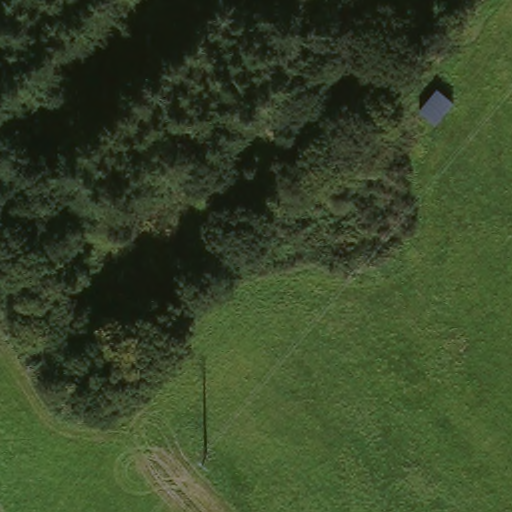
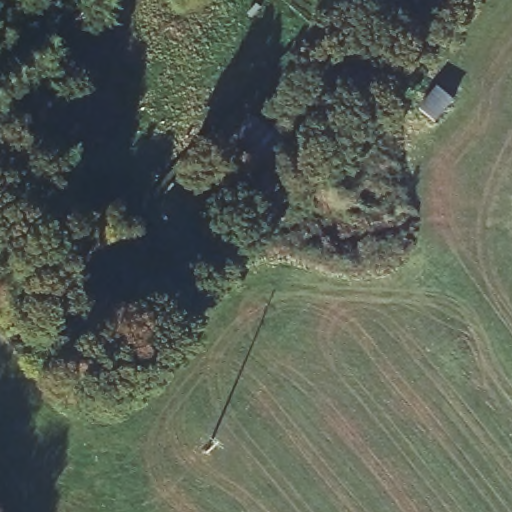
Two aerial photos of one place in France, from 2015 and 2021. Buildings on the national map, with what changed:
unchanged [(399,67),(353,107),(342,94),(388,54),(399,67)]

